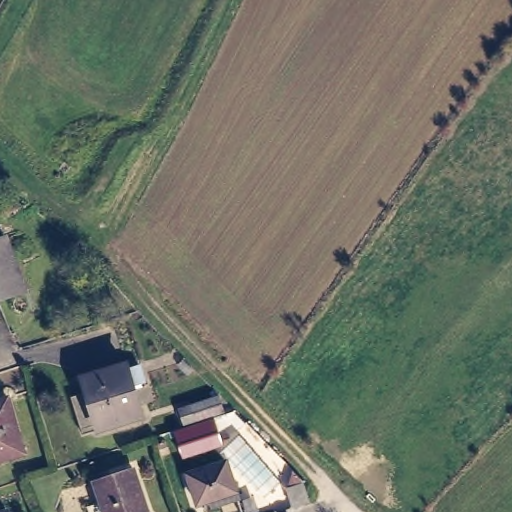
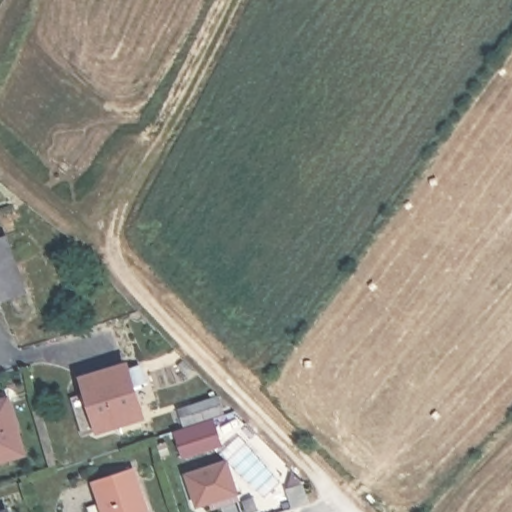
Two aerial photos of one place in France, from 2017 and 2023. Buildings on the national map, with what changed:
unchanged [(24,289),(0,297),(0,237),(7,235),(24,289)]
unchanged [(100,391),(95,376),(137,363),(152,413),(96,431),(84,397),(100,391)]
unchanged [(220,395),(229,414),(184,432),(175,406),(220,395)]
unchanged [(21,432),(17,434),(23,454),(0,462),(0,401),(9,398),(21,432)]
unchanged [(224,458),(236,496),(210,503),(208,496),(195,499),(186,469),(224,458)]
unchanged [(135,469),(149,512),(106,512),(97,483),(135,469)]
unchanged [(287,503),(281,484),(297,479),(304,498),(287,503)]
unchanged [(7,512),(0,512),(0,509),(6,508),(7,512)]

